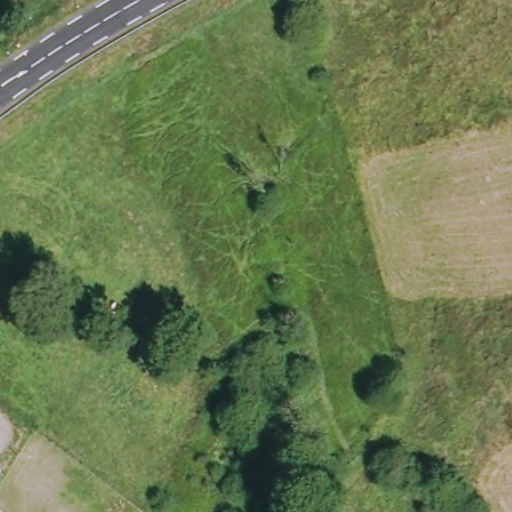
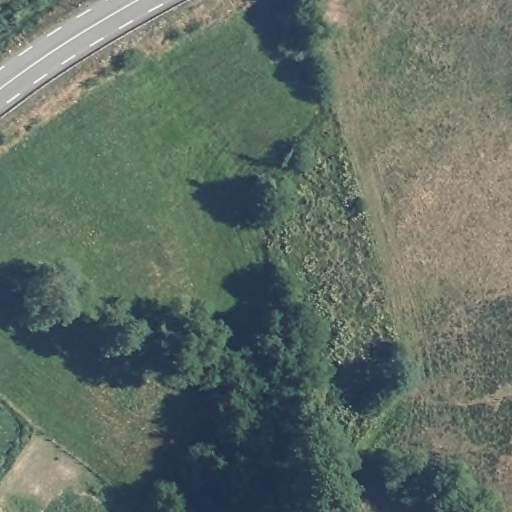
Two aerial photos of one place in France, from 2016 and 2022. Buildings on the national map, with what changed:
[]

